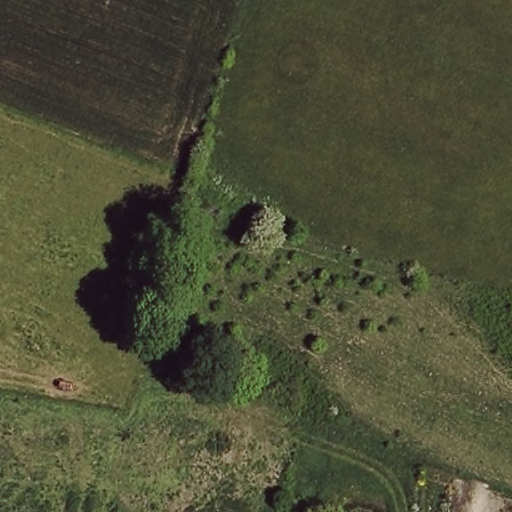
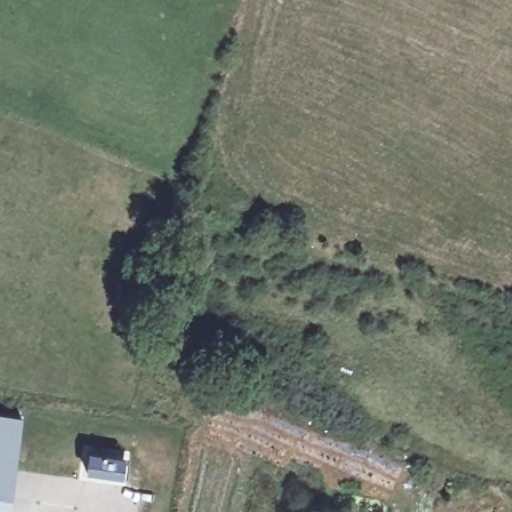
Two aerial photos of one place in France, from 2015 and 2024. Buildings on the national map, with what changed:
new [(9,512),(0,512),(0,416),(23,420),(9,512)]
new [(124,462),(121,482),(89,477),(92,457),(124,462)]

